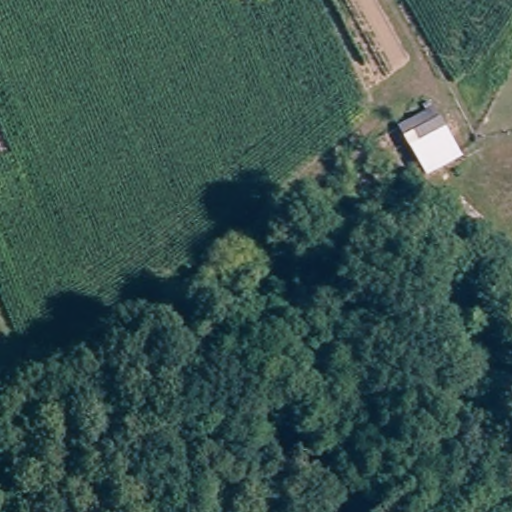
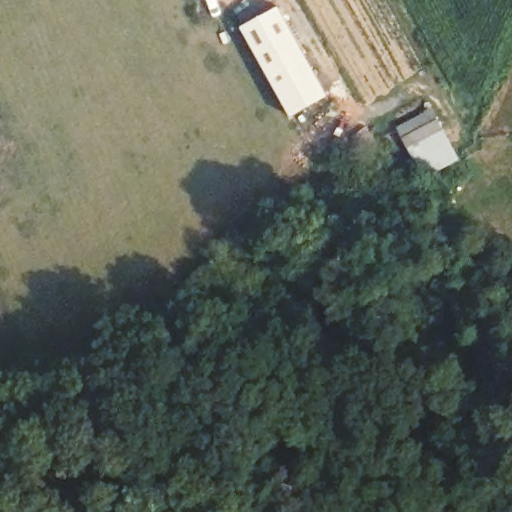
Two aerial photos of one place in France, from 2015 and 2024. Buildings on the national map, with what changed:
new [(279,7),(328,95),(291,117),(240,26),(279,7)]
unchanged [(460,158),(424,177),(397,125),(434,108),(460,158)]

